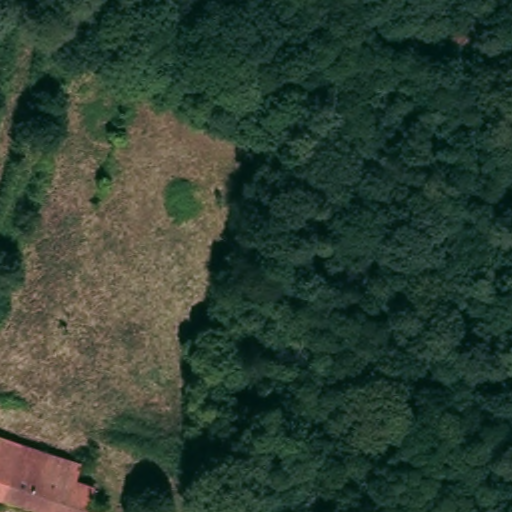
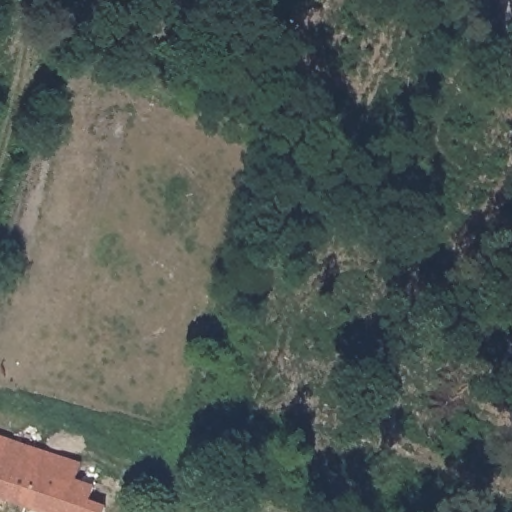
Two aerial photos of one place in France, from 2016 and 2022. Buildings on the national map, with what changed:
unchanged [(0,436),(54,455),(51,466),(39,506),(0,494),(0,436)]
unchanged [(70,474),(66,485),(81,491),(74,512),(59,512),(39,506),(51,466),(70,474)]

